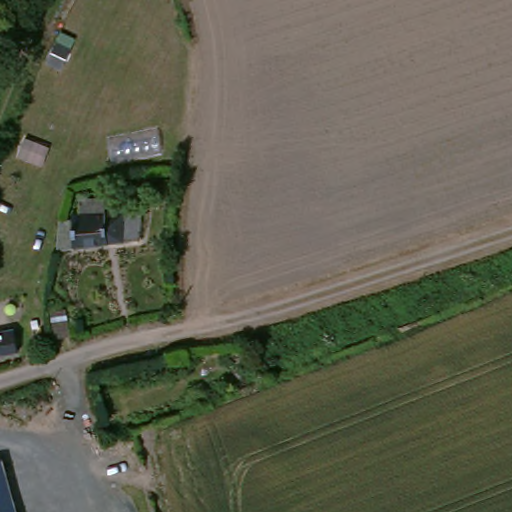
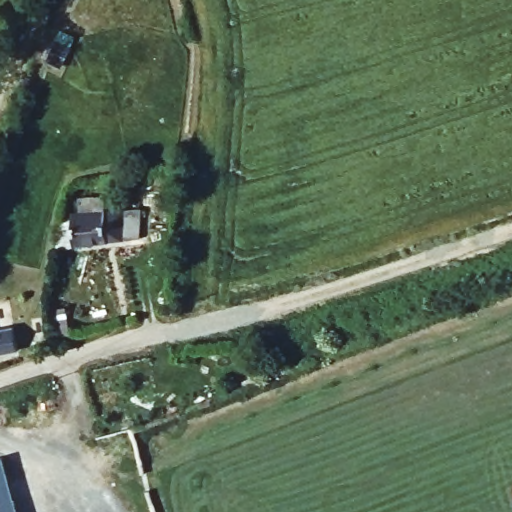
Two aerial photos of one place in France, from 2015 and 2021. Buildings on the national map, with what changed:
unchanged [(84,49),(74,69),(61,65),(71,42),(84,49)]
unchanged [(71,240),(69,218),(78,216),(78,203),(102,202),(103,212),(138,210),(139,245),(73,252),(71,240)]
unchanged [(66,305),(68,335),(53,336),(50,307),(66,305)]
unchanged [(13,352),(0,356),(0,335),(9,333),(13,352)]
unchanged [(20,512),(0,512),(0,455),(4,454),(20,512)]

